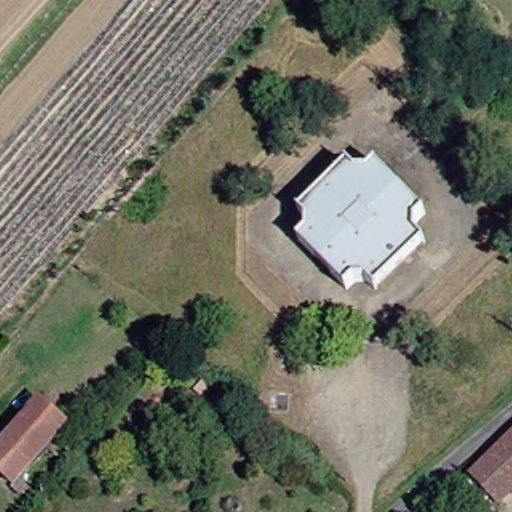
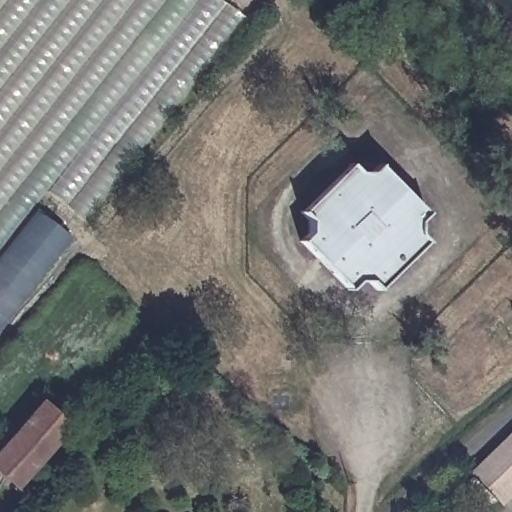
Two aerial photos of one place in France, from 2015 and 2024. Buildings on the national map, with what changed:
new [(87,223),(45,192),(0,249),(0,0),(223,0),(245,17),(87,223)]
unchanged [(303,241),(319,225),(306,211),(358,159),(372,173),(389,157),(438,212),(423,225),(437,240),(381,292),(368,277),(352,291),(303,241)]
new [(0,331),(0,254),(35,210),(72,239),(0,331)]
unchanged [(0,470),(0,459),(53,407),(78,433),(20,489),(0,470)]
unchanged [(512,440),(512,500),(503,508),(468,471),(484,455),(490,461),(512,440)]

